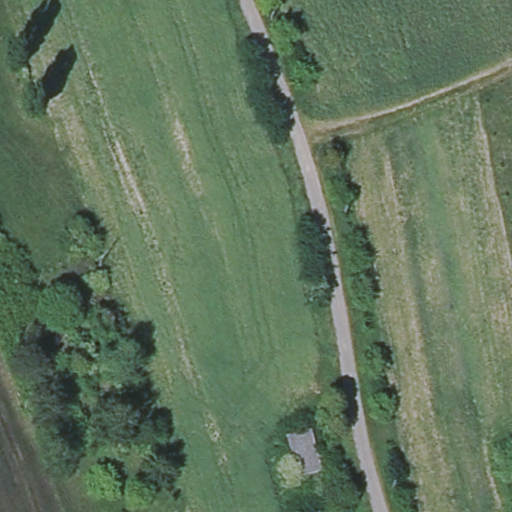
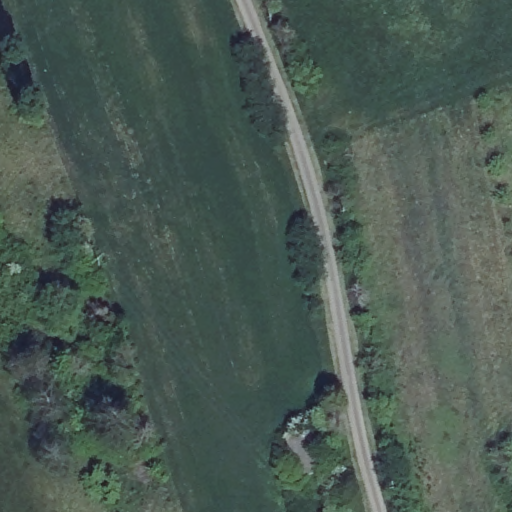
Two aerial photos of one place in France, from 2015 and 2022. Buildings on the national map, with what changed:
unchanged [(60,315),(72,356),(30,367),(16,327),(60,315)]
unchanged [(287,457),(293,455),(288,438),(304,435),(310,457),(315,456),(319,473),(298,478),(295,463),(290,465),(287,457)]

